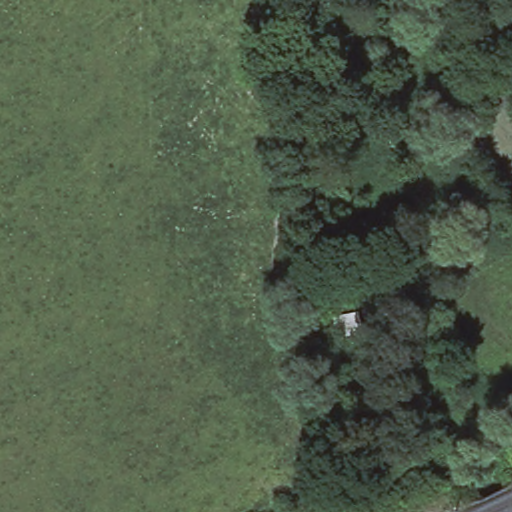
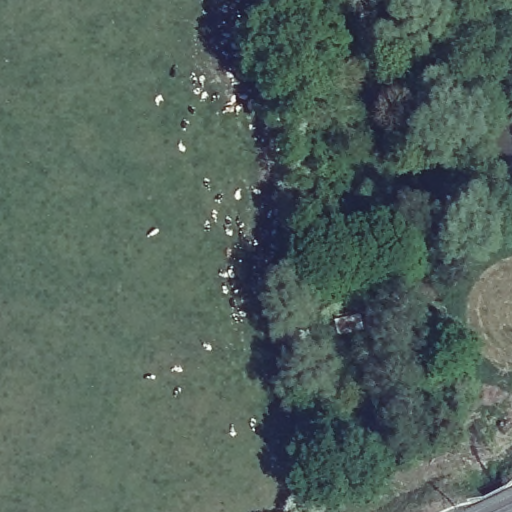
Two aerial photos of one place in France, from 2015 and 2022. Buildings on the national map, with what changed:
unchanged [(359,309),(364,333),(336,338),(332,315),(359,309)]

